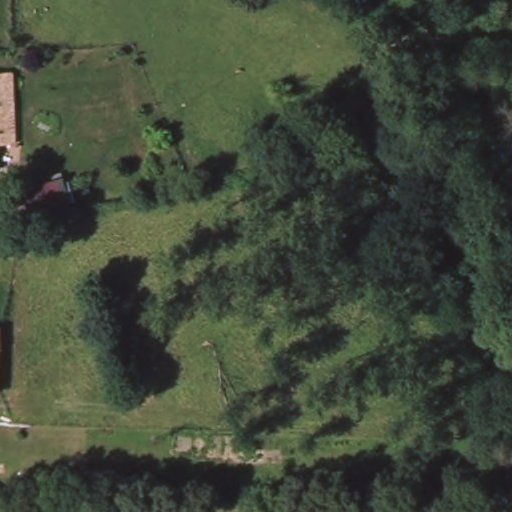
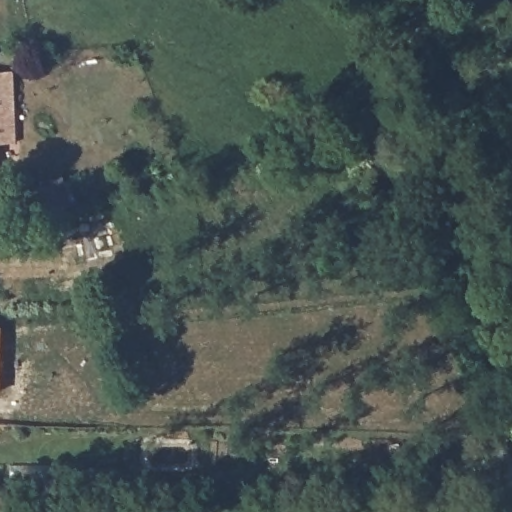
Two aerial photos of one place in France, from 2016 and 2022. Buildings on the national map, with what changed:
unchanged [(15,145),(0,145),(0,72),(14,72),(14,124),(15,145)]

